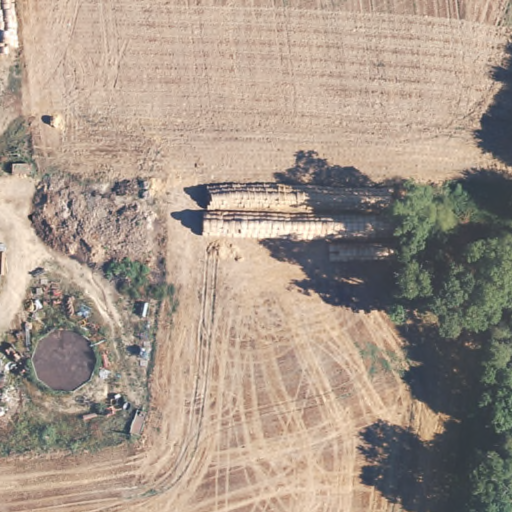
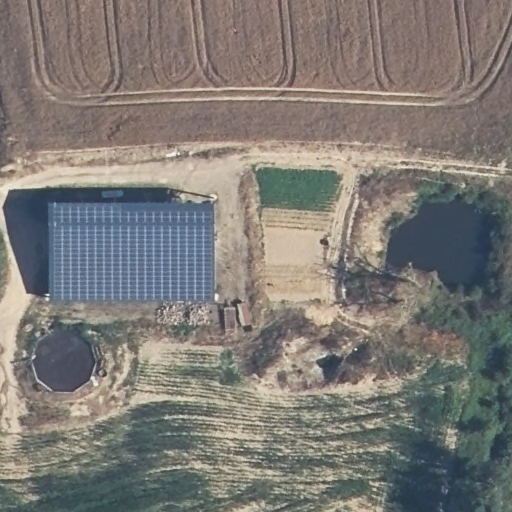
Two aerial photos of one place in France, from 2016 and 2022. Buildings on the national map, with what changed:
new [(50,297),(47,197),(213,197),(216,296),(50,297)]

